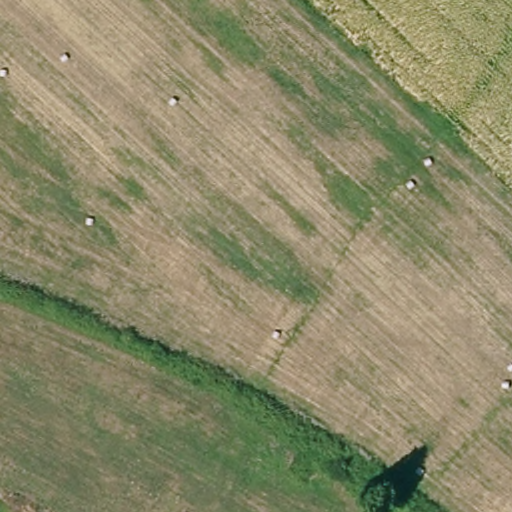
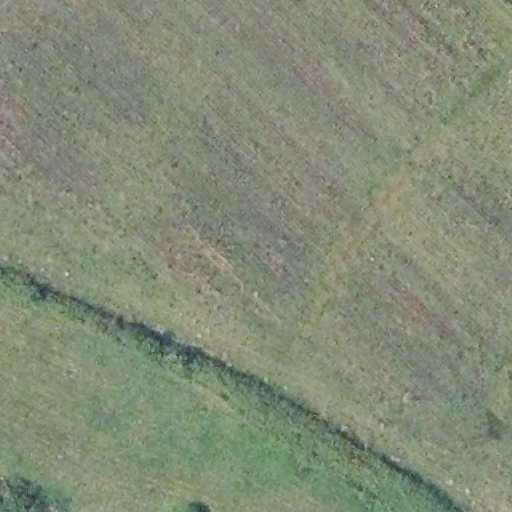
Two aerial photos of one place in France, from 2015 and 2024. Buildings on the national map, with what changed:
[]

